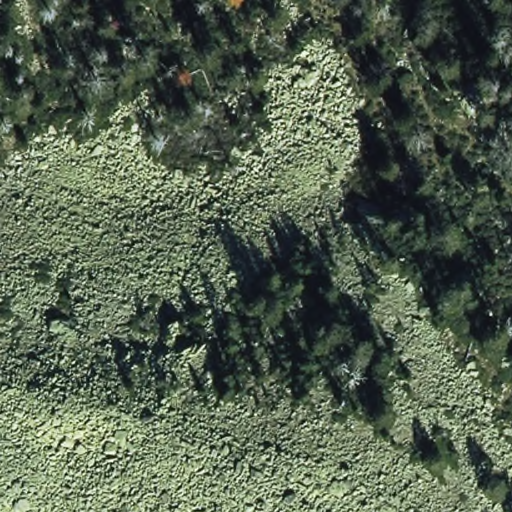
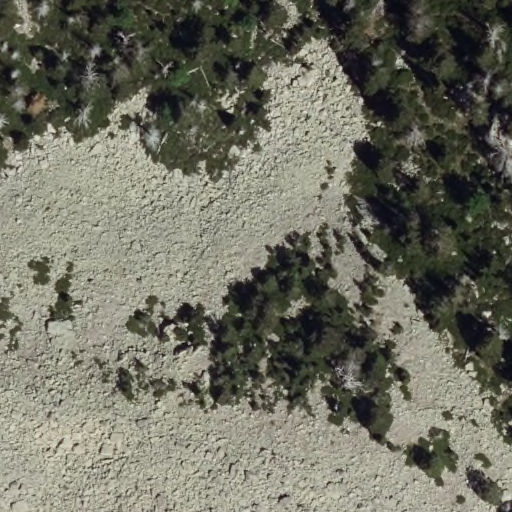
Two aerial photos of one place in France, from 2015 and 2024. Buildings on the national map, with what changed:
unchanged [(52,324),(71,324),(71,333),(51,333),(52,324)]

